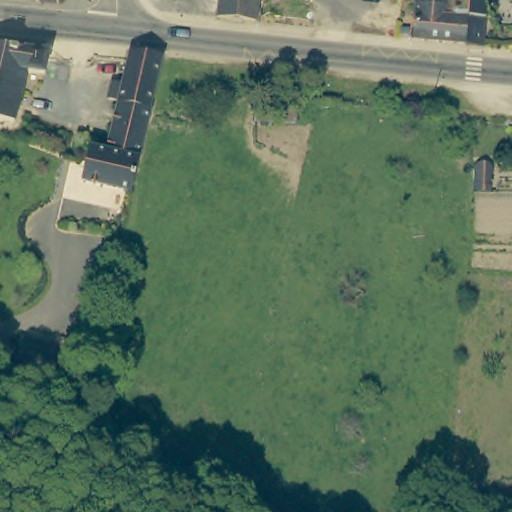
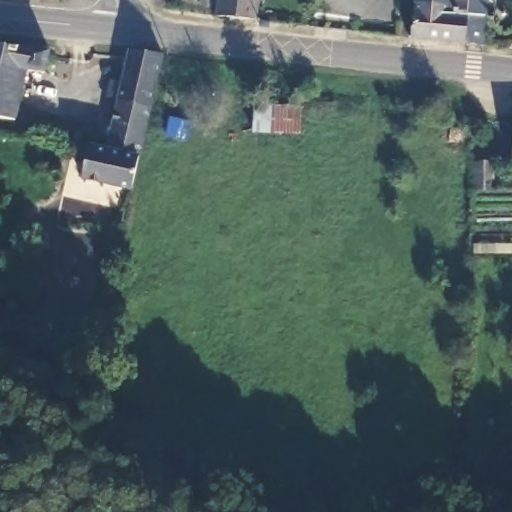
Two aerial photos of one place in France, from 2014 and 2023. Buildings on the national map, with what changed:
unchanged [(226,21),(230,0),(267,0),(263,26),(226,21)]
unchanged [(465,16),(462,40),(411,34),(413,0),(483,0),(481,17),(465,16)]
unchanged [(41,68),(22,68),(22,118),(0,118),(0,47),(41,47),(41,68)]
unchanged [(113,153),(109,149),(118,98),(108,95),(112,79),(121,81),(125,60),(128,48),(157,54),(146,119),(139,159),(113,153)]
unchanged [(92,147),(113,153),(139,159),(133,188),(85,179),(92,147)]
unchanged [(501,180),(500,164),(512,164),(512,179),(511,179),(501,180)]
unchanged [(75,367),(27,352),(38,320),(84,336),(75,367)]

